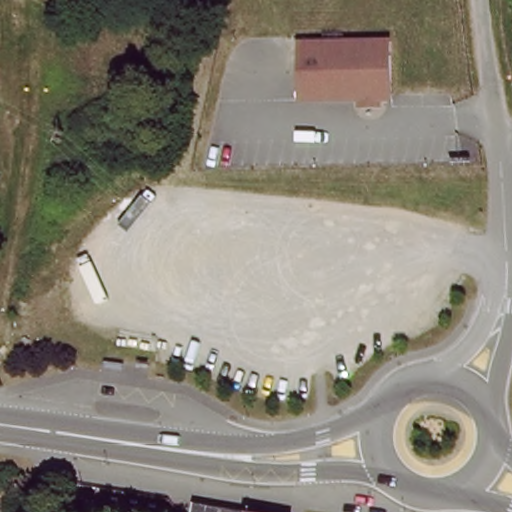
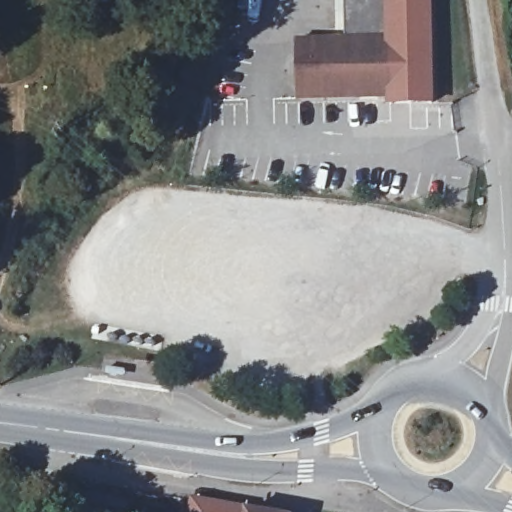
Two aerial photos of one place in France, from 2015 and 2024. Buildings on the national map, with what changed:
new [(346,0),(432,0),(436,106),(386,108),(387,99),(381,99),(382,108),(358,110),(359,101),(297,102),(298,93),(389,91),(388,35),(346,36),(346,0)]
unchanged [(298,93),(297,37),(388,35),(389,91),(298,93)]
unchanged [(194,512),(195,505),(238,512),(194,512)]

